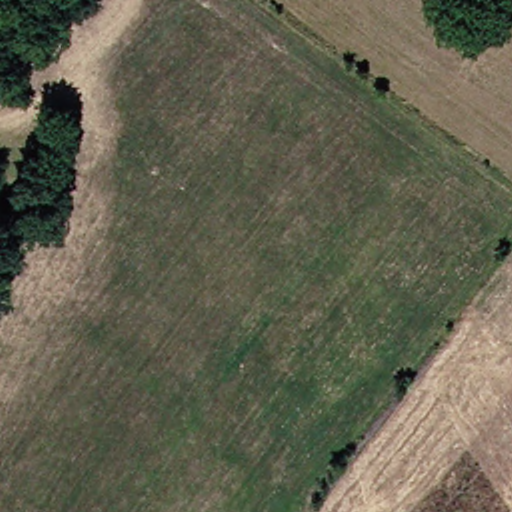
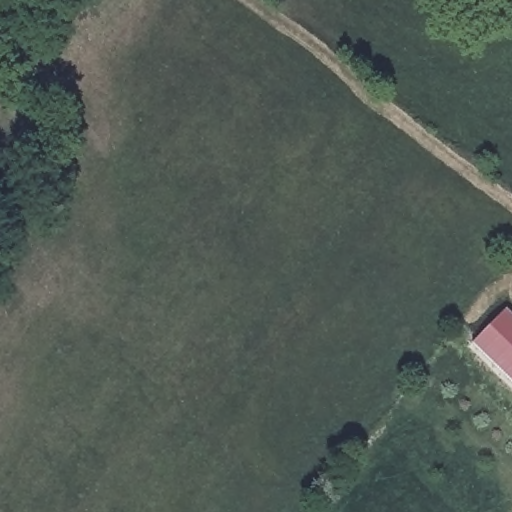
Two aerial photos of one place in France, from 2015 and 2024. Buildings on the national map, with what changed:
new [(472,345),(506,309),(512,315),(512,385),(472,345)]

